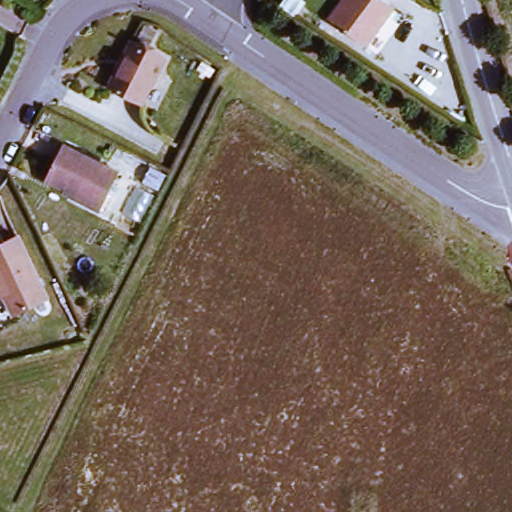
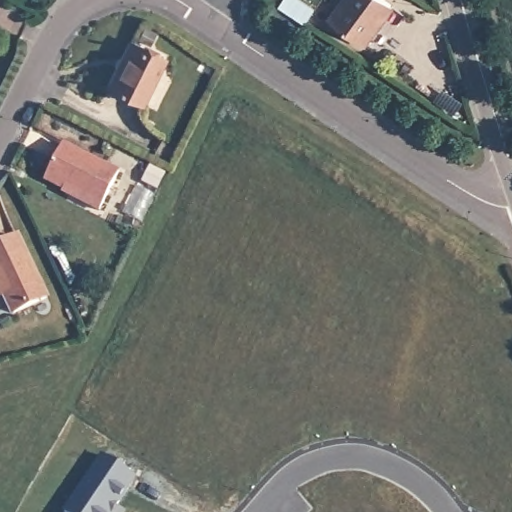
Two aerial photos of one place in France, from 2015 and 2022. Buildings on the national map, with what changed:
unchanged [(296,14),(279,2),(280,0),(295,0),(303,4),(296,14)]
unchanged [(333,0),(384,0),(386,1),(359,43),(321,20),(333,0)]
unchanged [(163,57),(141,100),(106,82),(128,39),(163,57)]
unchanged [(60,141),(116,170),(96,207),(68,192),(69,189),(42,175),(60,141)]
unchanged [(46,296),(14,312),(1,287),(0,287),(0,243),(15,236),(46,296)]
new [(138,478),(116,512),(65,512),(102,456),(138,478)]

